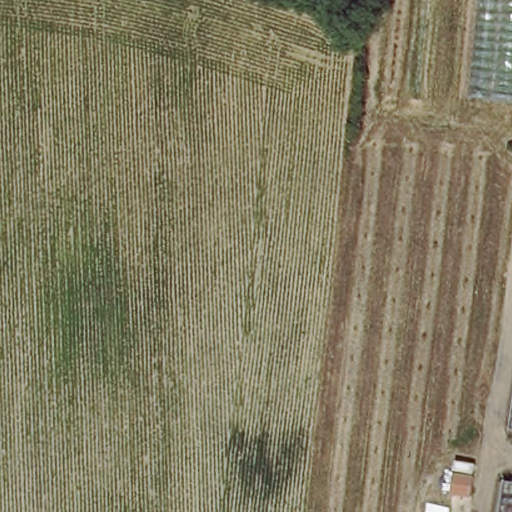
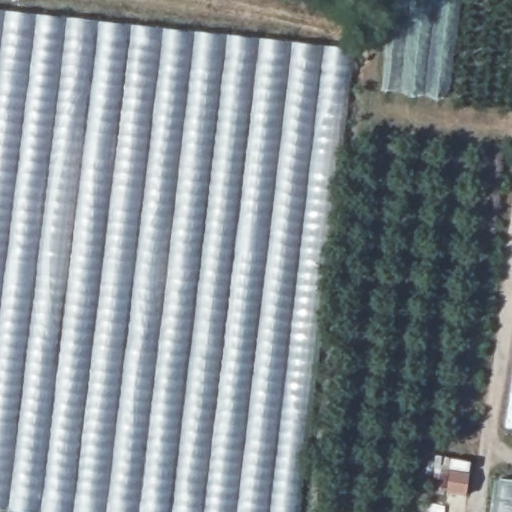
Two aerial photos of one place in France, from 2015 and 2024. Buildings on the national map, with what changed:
demolished [(382,91),(391,0),(512,0),(512,102),(382,91)]
new [(300,512),(0,512),(0,15),(352,59),(300,512)]
unchanged [(512,397),(512,431),(508,430),(512,397)]
unchanged [(507,482),(512,483),(512,512),(495,512),(500,481),(507,482)]

